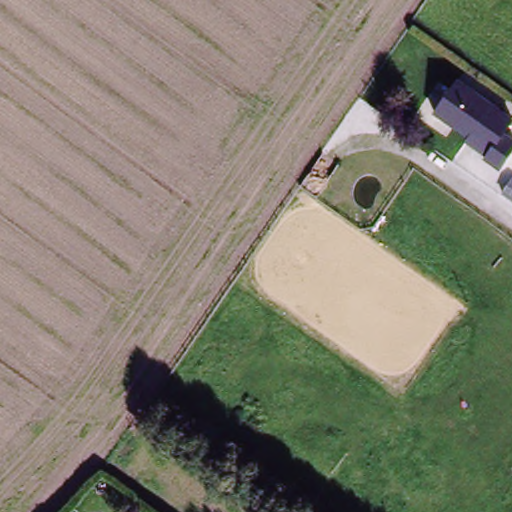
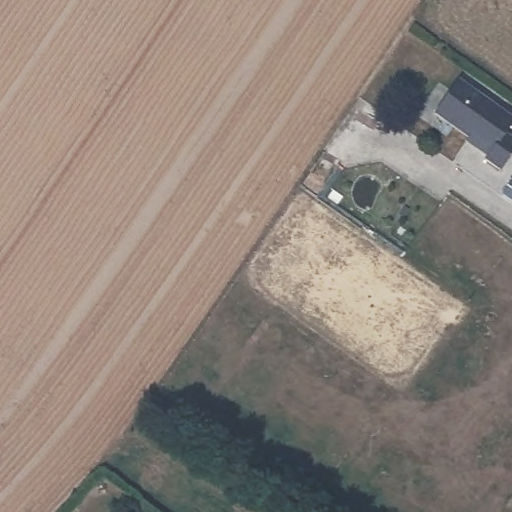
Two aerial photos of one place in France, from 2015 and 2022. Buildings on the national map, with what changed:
unchanged [(512,120),(512,122),(505,134),(512,140),(512,153),(498,171),(431,113),(455,78),(512,120)]

